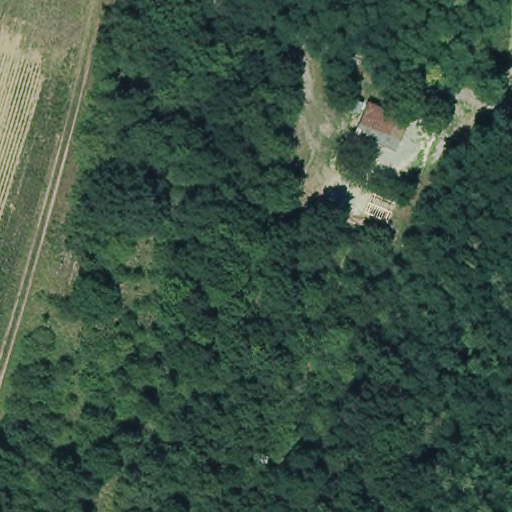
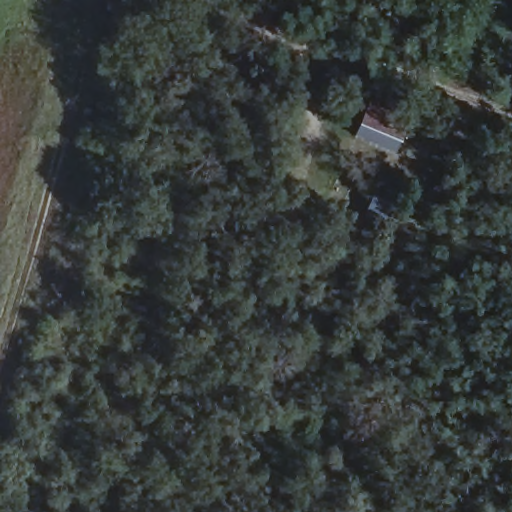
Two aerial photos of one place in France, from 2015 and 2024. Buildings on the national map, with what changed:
unchanged [(395,150),(348,132),(357,115),(330,104),(340,86),(408,117),(395,150)]

